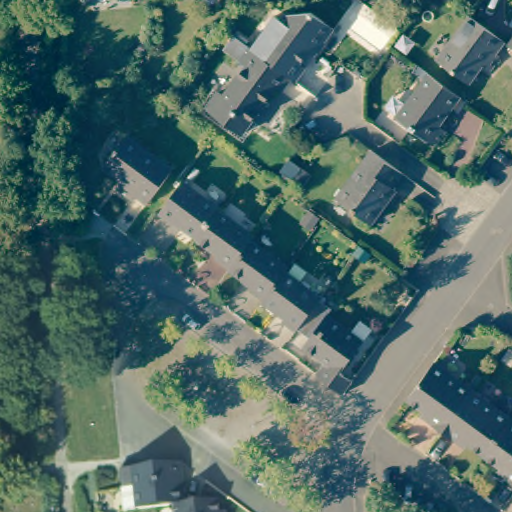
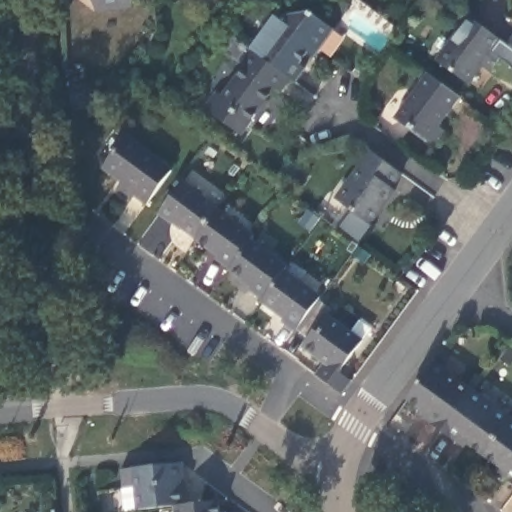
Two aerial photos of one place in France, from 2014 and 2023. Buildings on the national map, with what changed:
unchanged [(260,35),(264,39),(278,20),(280,21),(285,15),(309,12),(332,29),(312,57),(307,53),(299,64),(301,65),(290,80),(288,79),(253,52),(249,49),(260,35)]
unchanged [(491,55),(495,58),(485,72),(476,66),(462,84),(433,62),(466,19),(499,43),(491,55)]
unchanged [(512,34),(512,52),(503,46),(512,34)]
unchanged [(279,91),(273,87),(239,133),(204,107),(216,92),(221,96),(244,65),(221,49),(231,36),(249,49),(253,52),(288,79),(279,91)]
unchanged [(433,125),(438,129),(428,144),(395,120),(428,74),(456,94),(433,125)]
unchanged [(170,169),(144,203),(133,194),(130,198),(114,187),(118,181),(100,167),(124,135),(170,169)]
unchanged [(390,188),(393,190),(369,224),(335,200),(370,152),(400,174),(390,188)]
unchanged [(217,210),(196,239),(182,227),(181,229),(170,221),(169,222),(159,215),(182,182),(217,210)]
unchanged [(213,258),(215,256),(195,240),(196,239),(217,210),(253,237),(250,241),(228,270),(213,258)]
unchanged [(286,268),(283,272),(262,301),(247,291),(247,287),(238,281),(238,277),(228,270),(250,241),(286,268)]
unchanged [(319,298),(317,301),(295,331),(281,321),(283,318),(261,302),(262,301),(283,272),(319,298)]
unchanged [(321,362),(299,347),(305,338),(295,331),(317,301),(328,308),(323,314),(360,341),(338,373),(350,382),(341,395),(313,374),(321,362)]
unchanged [(431,423),(433,420),(407,402),(435,363),(473,391),(443,432),(431,423)]
unchanged [(458,438),(456,442),(443,432),(473,391),(512,420),(484,457),(458,438)]
unchanged [(510,476),(484,457),(512,420),(512,483),(507,480),(510,476)]
unchanged [(136,507),(123,508),(121,486),(120,486),(118,468),(132,467),(182,462),(183,478),(178,478),(181,503),(172,505),(139,507),(136,507)]
unchanged [(172,505),(181,503),(217,501),(219,512),(173,512),(172,505)]

